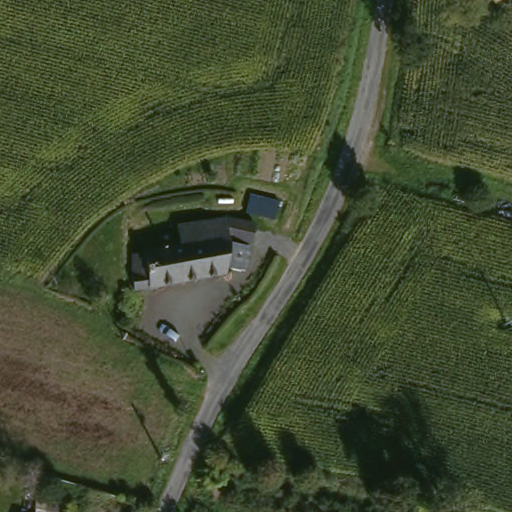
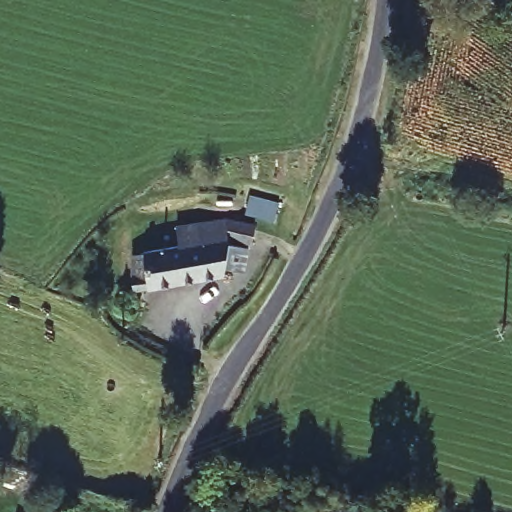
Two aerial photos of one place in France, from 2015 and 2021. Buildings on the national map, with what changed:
unchanged [(268,231),(265,250),(245,246),(244,250),(263,253),(258,278),(240,274),(239,282),(147,278),(145,277),(132,276),(134,241),(190,243),(191,223),(240,226),(268,231)]
unchanged [(69,500),(73,502),(71,508),(66,507),(64,512),(46,512),(42,510),(47,496),(68,503),(69,500)]

